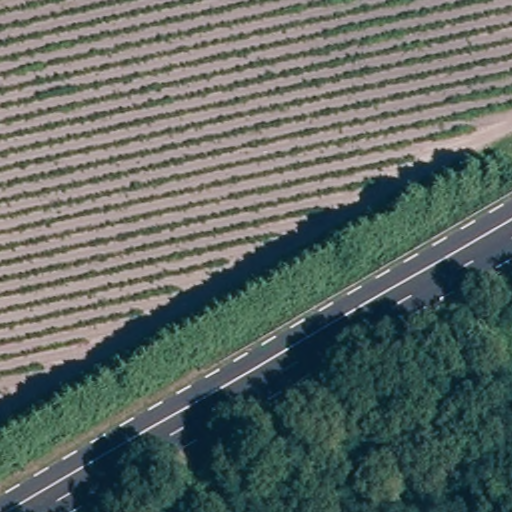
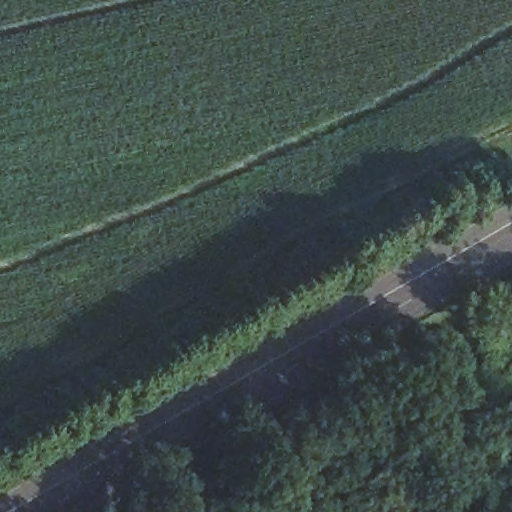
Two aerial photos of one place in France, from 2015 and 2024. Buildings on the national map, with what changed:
[]

